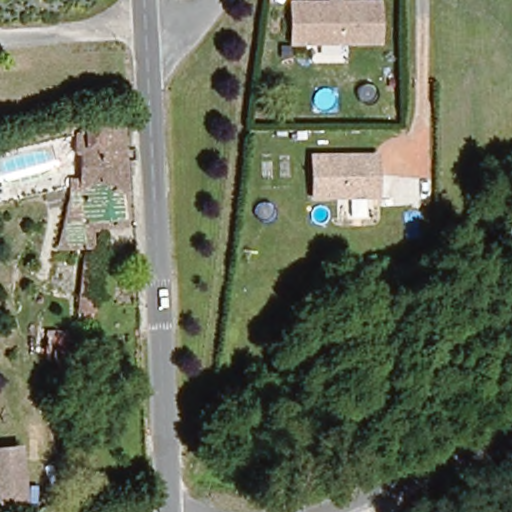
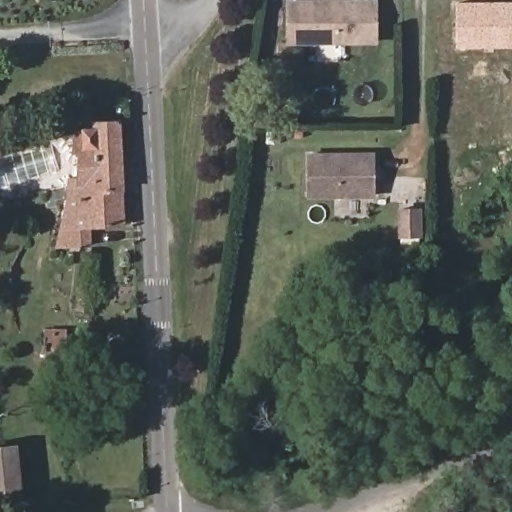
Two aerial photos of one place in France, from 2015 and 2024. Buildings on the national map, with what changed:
unchanged [(375,3),(375,43),(287,41),(288,1),(375,3)]
new [(512,45),(456,46),(456,4),(512,3),(512,45)]
unchanged [(97,132),(97,127),(124,126),(128,193),(126,193),(128,226),(92,229),(94,247),(61,251),(74,195),(80,194),(82,150),(76,149),(77,134),(88,133),(97,132)]
unchanged [(375,197),(310,201),(307,153),(375,152),(375,197)]
unchanged [(87,258),(90,313),(80,314),(78,259),(87,258)]
unchanged [(68,336),(67,365),(52,365),(54,337),(68,336)]
unchanged [(0,502),(0,448),(15,447),(21,500),(0,502)]

